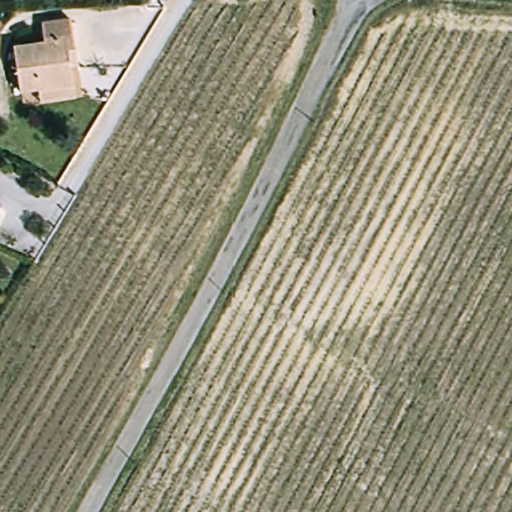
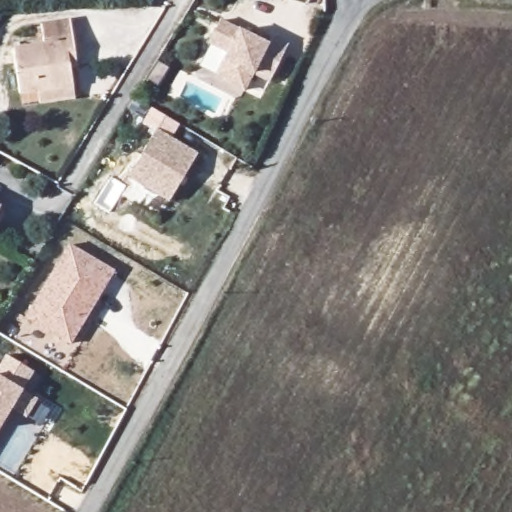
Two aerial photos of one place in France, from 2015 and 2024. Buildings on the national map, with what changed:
new [(221,20),(238,29),(269,44),(272,37),(290,45),(270,83),(254,75),(245,94),(215,79),(222,61),(225,54),(208,45),(221,20)]
unchanged [(37,90),(15,92),(11,49),(42,47),(40,25),(70,22),(73,61),(67,62),(68,87),(37,90)]
new [(167,204),(126,180),(154,130),(195,154),(167,204)]
new [(70,244),(116,272),(71,345),(25,318),(70,244)]
new [(33,372),(23,392),(38,401),(27,417),(12,408),(0,427),(0,368),(7,356),(33,372)]

